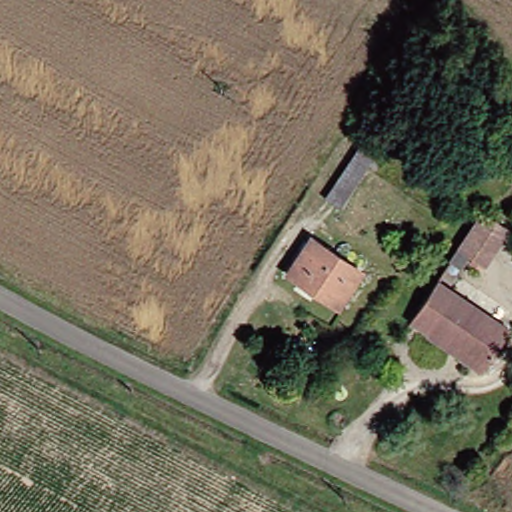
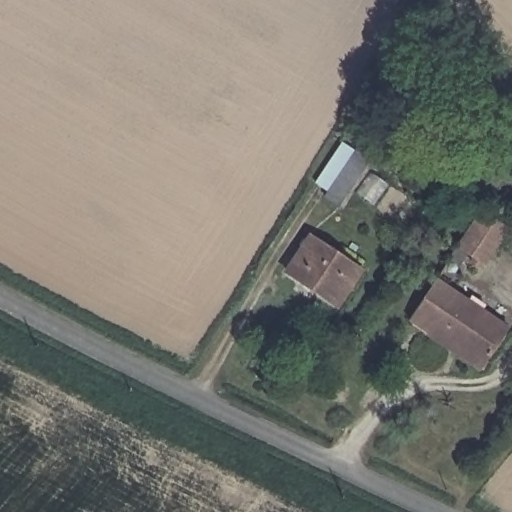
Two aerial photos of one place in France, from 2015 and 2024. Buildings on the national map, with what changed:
unchanged [(367,156),(333,206),(320,196),(353,146),(367,156)]
unchanged [(497,229),(474,264),(457,252),(448,264),(438,257),(470,210),(497,229)]
unchanged [(346,271),(322,307),(270,272),(295,236),(346,271)]
unchanged [(497,330),(473,364),(445,345),(444,346),(416,327),(415,330),(398,320),(425,281),(497,330)]

